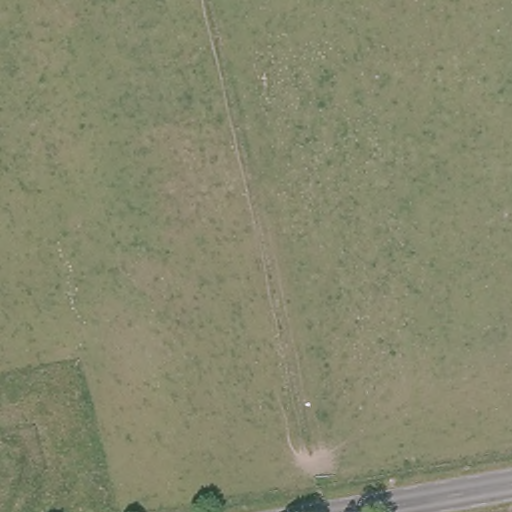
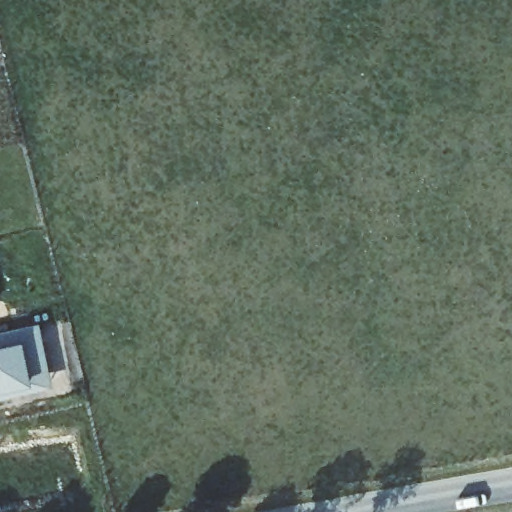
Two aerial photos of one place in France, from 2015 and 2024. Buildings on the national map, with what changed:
new [(42,322),(57,386),(0,399),(0,332),(42,322)]

